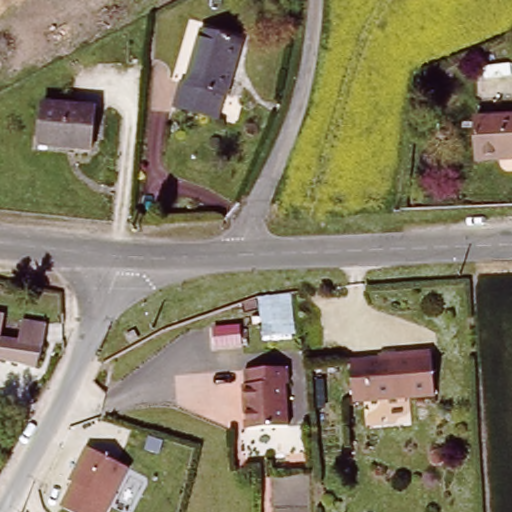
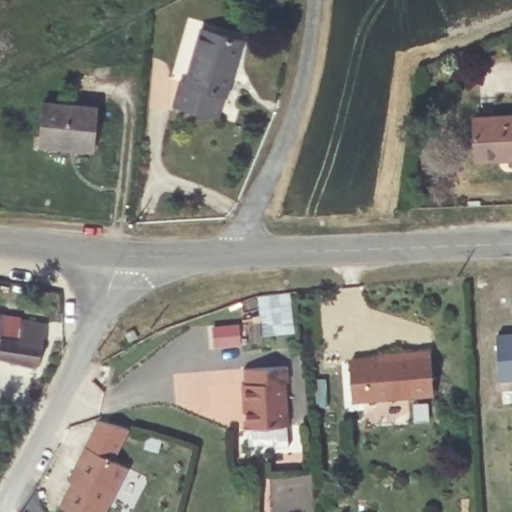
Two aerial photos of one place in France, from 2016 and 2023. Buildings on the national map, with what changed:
unchanged [(243,46),(228,100),(225,100),(218,122),(177,111),(183,87),(188,89),(204,35),(243,46)]
unchanged [(95,107),(91,150),(40,145),(43,104),(95,107)]
unchanged [(512,155),(478,157),(475,115),(512,112),(512,155)]
unchanged [(0,360),(0,339),(16,342),(25,315),(49,323),(41,346),(38,366),(0,360)]
new [(512,378),(500,379),(497,334),(512,333),(512,378)]
unchanged [(433,353),(436,397),(352,402),(350,362),(401,359),(400,355),(433,353)]
unchanged [(290,367),(291,388),(285,388),(288,429),(247,432),(246,407),(243,407),(241,387),(246,386),(245,370),(290,367)]
unchanged [(107,512),(68,512),(57,507),(85,446),(128,465),(107,512)]

